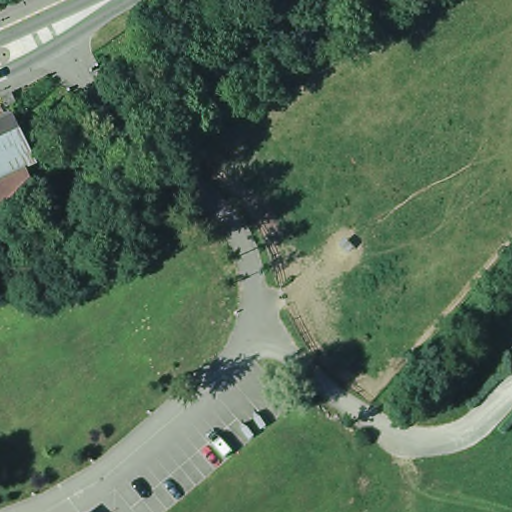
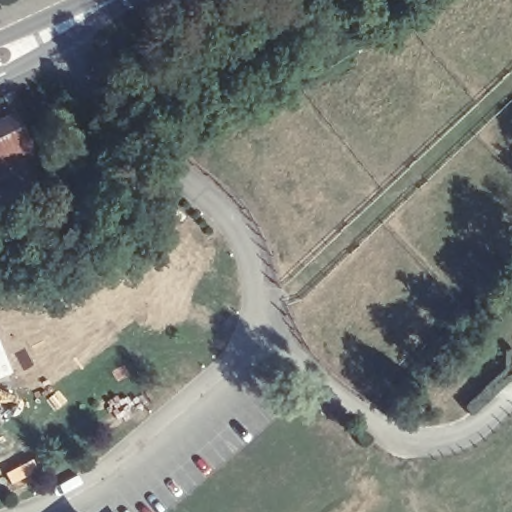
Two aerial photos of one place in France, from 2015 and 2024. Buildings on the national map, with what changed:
unchanged [(19,120),(39,158),(0,178),(0,129),(19,120)]

